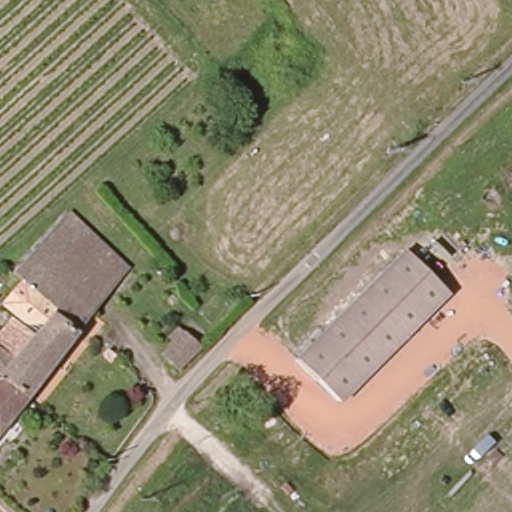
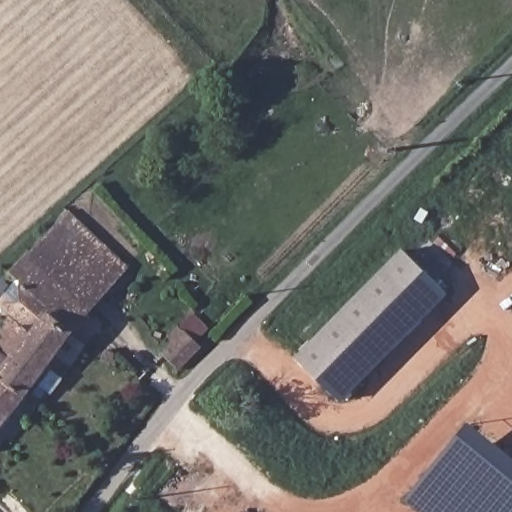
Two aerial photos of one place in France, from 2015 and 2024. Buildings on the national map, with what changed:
unchanged [(0,378),(0,340),(19,316),(7,304),(19,288),(10,280),(59,227),(72,211),(134,266),(143,274),(131,288),(125,295),(116,287),(25,398),(0,429),(0,384),(3,380),(0,378)]
unchanged [(339,400),(294,356),(401,249),(446,292),(339,400)]
unchanged [(182,372),(166,356),(177,345),(165,331),(177,321),(202,347),(182,372)]
new [(512,455),(512,512),(418,512),(404,500),(470,421),(512,455)]

